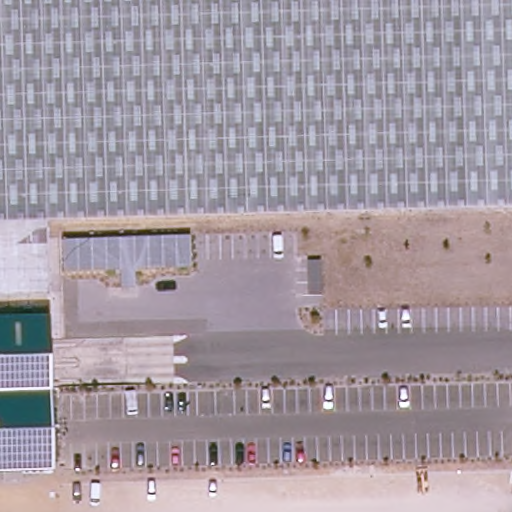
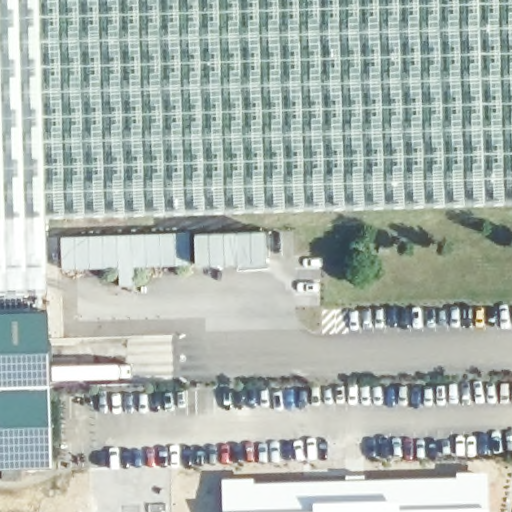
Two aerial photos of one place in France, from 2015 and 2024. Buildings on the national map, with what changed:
unchanged [(91,203),(49,204),(54,278),(0,280),(0,0),(512,0),(512,191),(91,203)]
new [(265,263),(197,266),(194,234),(265,231),(265,263)]
unchanged [(135,269),(135,287),(120,288),(120,268),(65,271),(64,239),(190,234),(191,267),(135,269)]
unchanged [(53,463),(0,465),(0,313),(51,312),(53,463)]
new [(254,477),(254,480),(454,475),(454,471),(488,471),(489,512),(221,512),(220,477),(254,477)]

